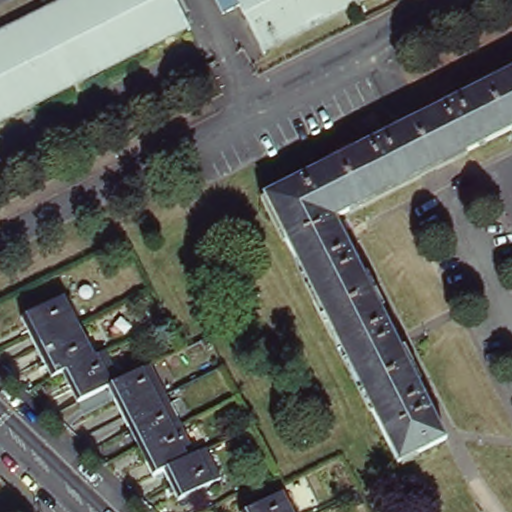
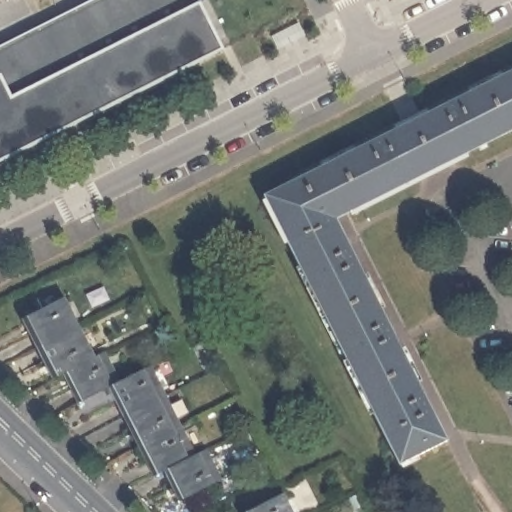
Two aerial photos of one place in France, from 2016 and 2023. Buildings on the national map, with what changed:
demolished [(0,34),(67,0),(174,0),(189,29),(0,123),(0,34)]
new [(194,0),(217,45),(76,117),(73,110),(27,135),(31,141),(0,155),(0,49),(95,0),(194,0)]
demolished [(366,0),(358,5),(358,6),(263,54),(240,6),(234,9),(222,14),(215,0),(366,0)]
unchanged [(264,196),(512,71),(512,130),(332,220),(444,442),(399,465),(264,196)]
unchanged [(26,321),(68,299),(83,330),(41,351),(26,321)]
unchanged [(41,351),(83,330),(98,359),(66,375),(56,380),(41,351)]
unchanged [(66,375),(98,359),(108,353),(123,383),(113,389),(83,405),(66,375)]
unchanged [(113,389),(123,383),(155,367),(170,396),(127,417),(113,389)]
unchanged [(127,417),(170,396),(185,426),(143,448),(127,417)]
unchanged [(200,455),(166,472),(157,477),(143,448),(185,426),(200,455)]
unchanged [(224,481),(182,502),(166,472),(200,455),(208,451),(224,481)]
unchanged [(285,495),(294,512),(251,512),(285,495)]

